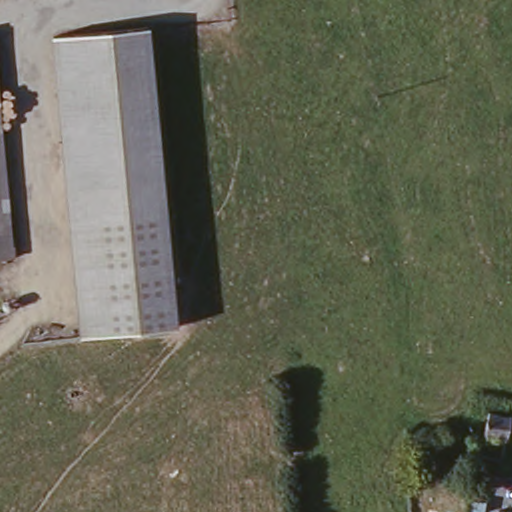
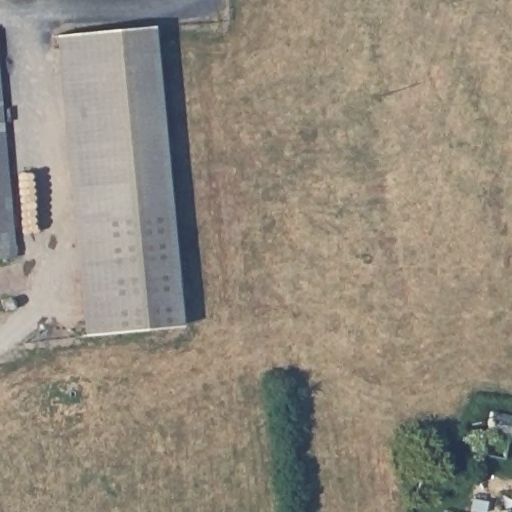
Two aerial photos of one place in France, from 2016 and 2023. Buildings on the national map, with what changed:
unchanged [(151,24),(179,329),(81,336),(54,34),(151,24)]
unchanged [(0,171),(0,85),(9,170),(0,171)]
unchanged [(18,253),(12,255),(0,257),(0,171),(9,170),(18,253)]
unchanged [(479,456),(482,444),(479,444),(481,431),(472,430),(474,425),(478,413),(489,412),(491,404),(494,404),(495,408),(503,411),(512,413),(512,421),(508,433),(512,435),(512,440),(505,440),(502,449),(499,461),(479,456)]
unchanged [(506,509),(512,510),(512,512),(505,512),(506,509)]

